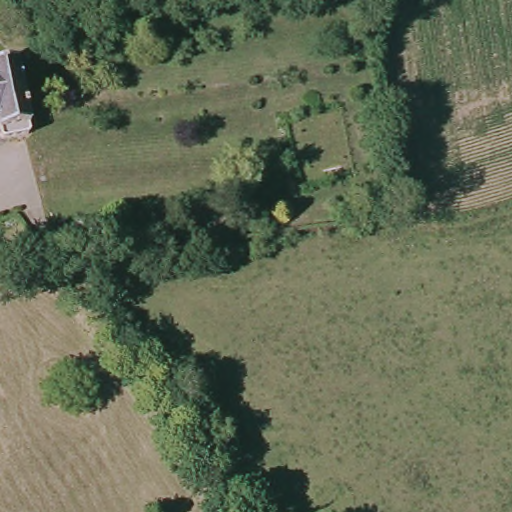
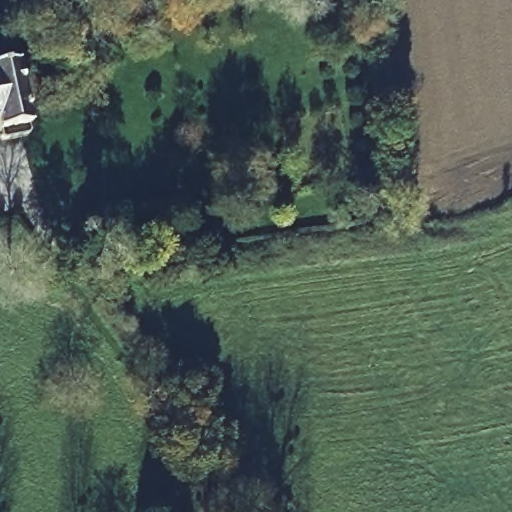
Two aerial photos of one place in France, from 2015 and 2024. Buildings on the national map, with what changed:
unchanged [(0,131),(0,53),(10,50),(28,125),(0,131)]

